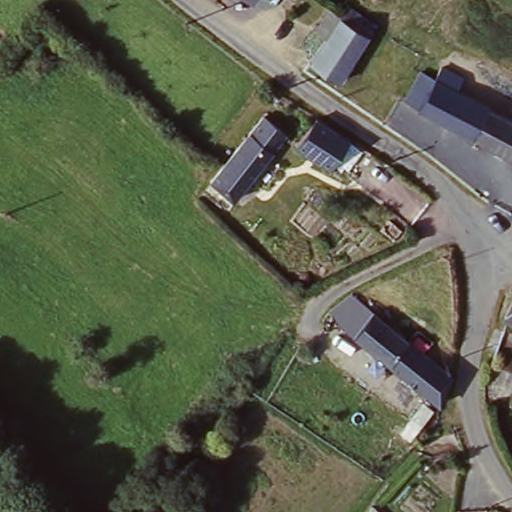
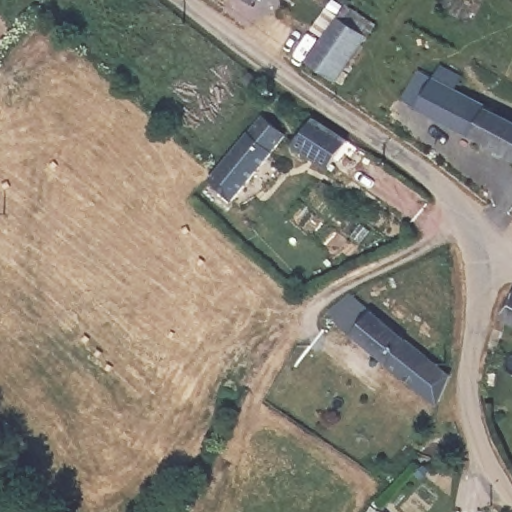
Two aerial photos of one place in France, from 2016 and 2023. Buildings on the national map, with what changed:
unchanged [(251,0),(269,0),(265,8),(251,0)]
unchanged [(338,90),(317,74),(334,48),(322,40),(343,14),(353,21),(378,39),(338,90)]
unchanged [(407,109),(425,75),(433,78),(435,71),(458,83),(456,92),(512,121),(512,163),(407,109)]
unchanged [(263,115),(288,135),(277,147),(236,200),(210,180),(217,172),(250,128),(263,115)]
unchanged [(347,183),(302,147),(322,122),(370,159),(347,183)]
unchanged [(502,322),(512,299),(512,327),(502,322)]
unchanged [(350,321),(366,314),(380,306),(394,320),(466,386),(457,410),(452,419),(452,422),(371,342),(350,321)]
unchanged [(206,512),(167,512),(178,491),(209,505),(206,512)]

